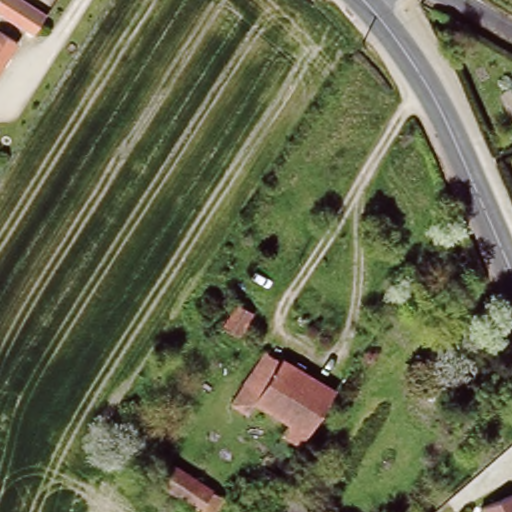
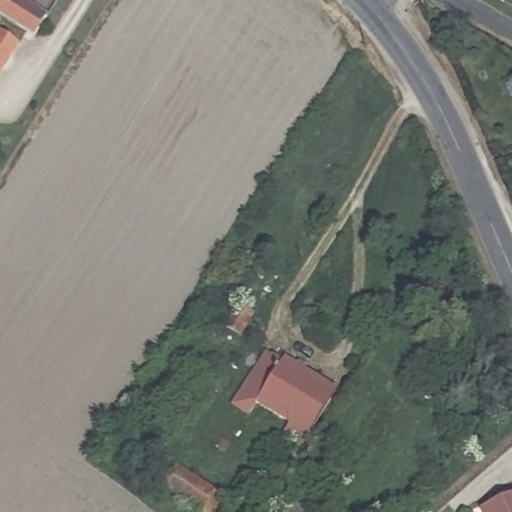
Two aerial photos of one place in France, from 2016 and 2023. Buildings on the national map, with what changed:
unchanged [(5,16),(0,13),(0,2),(1,0),(20,0),(48,19),(36,38),(5,16)]
unchanged [(0,75),(0,33),(19,45),(0,75)]
unchanged [(248,313),(233,337),(218,327),(233,304),(248,313)]
unchanged [(289,371),(293,366),(301,371),(298,376),(332,397),(300,450),(284,440),(292,427),(253,402),(244,414),(228,404),(258,356),(275,366),(277,363),(289,371)]
unchanged [(223,499),(215,512),(199,512),(199,511),(163,488),(174,469),(223,499)]
unchanged [(248,482),(241,492),(231,485),(238,476),(248,482)]
unchanged [(311,505),(307,512),(277,512),(290,492),(311,505)]
unchanged [(512,494),(512,512),(486,512),(483,507),(512,494)]

